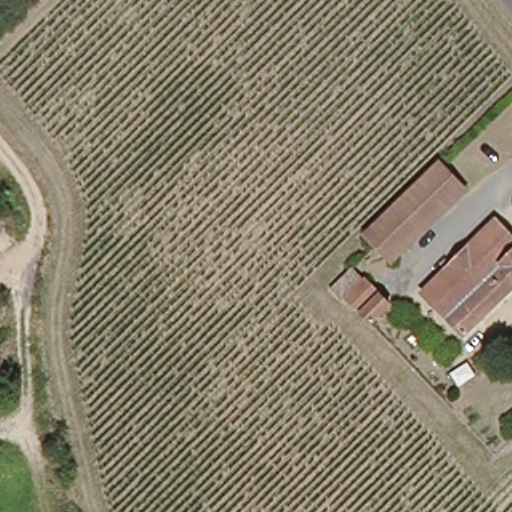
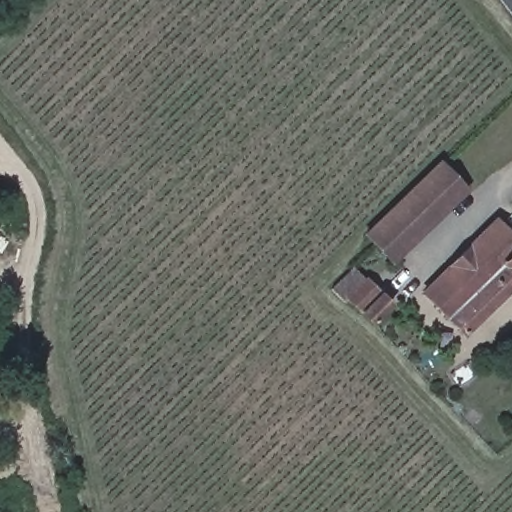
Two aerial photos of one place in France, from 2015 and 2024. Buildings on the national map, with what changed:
unchanged [(365,236),(438,170),(459,192),(390,261),(365,236)]
unchanged [(421,296),(492,226),(512,246),(512,291),(463,338),(421,296)]
unchanged [(371,325),(336,292),(359,266),(390,302),(371,325)]

